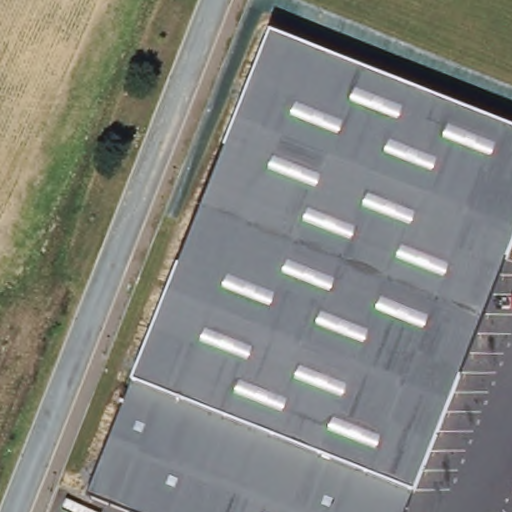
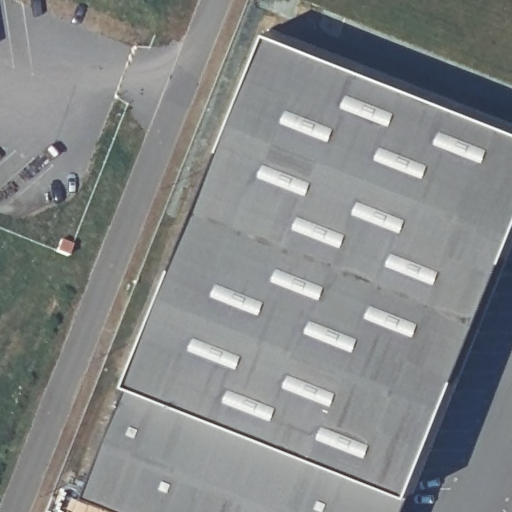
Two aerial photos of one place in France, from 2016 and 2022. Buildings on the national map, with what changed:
unchanged [(131,383),(271,31),(512,127),(512,248),(415,491),(407,512),(131,512),(87,495),(131,383)]

